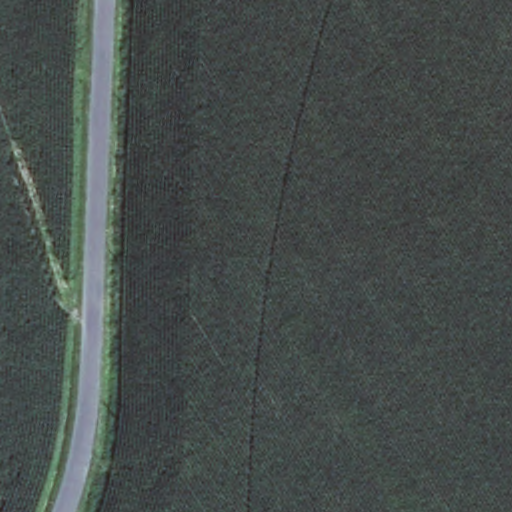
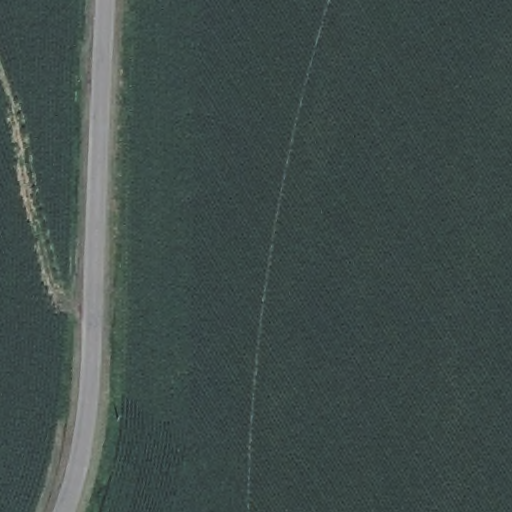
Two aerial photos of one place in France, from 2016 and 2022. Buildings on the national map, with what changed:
[]

